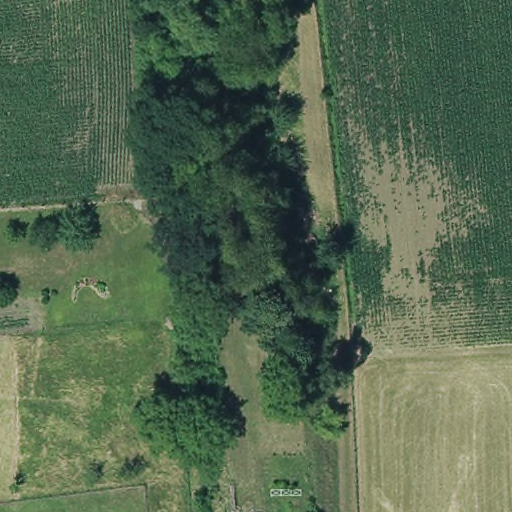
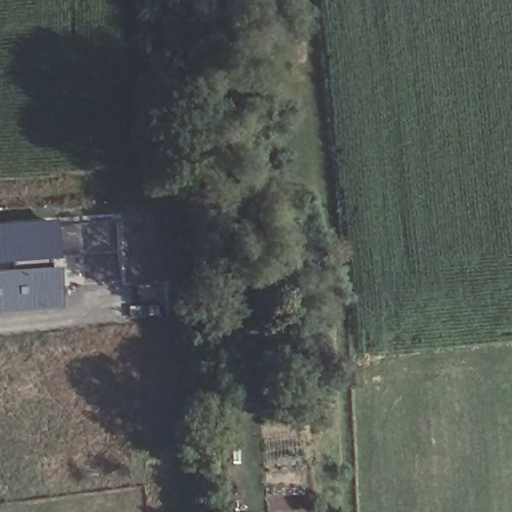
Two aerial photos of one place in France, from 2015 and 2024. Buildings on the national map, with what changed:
new [(58,219),(62,260),(0,264),(0,225),(58,219)]
new [(63,269),(65,308),(0,312),(0,272),(63,269)]

